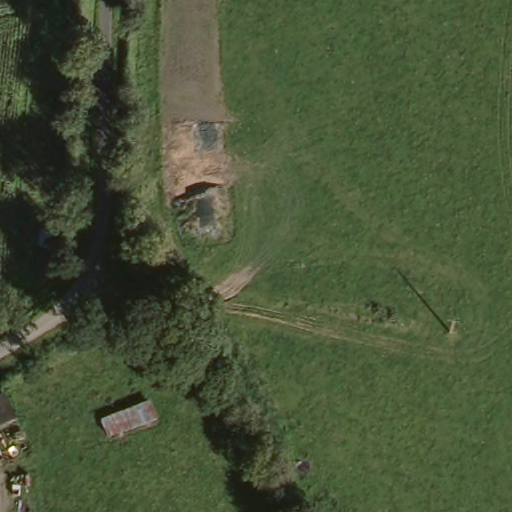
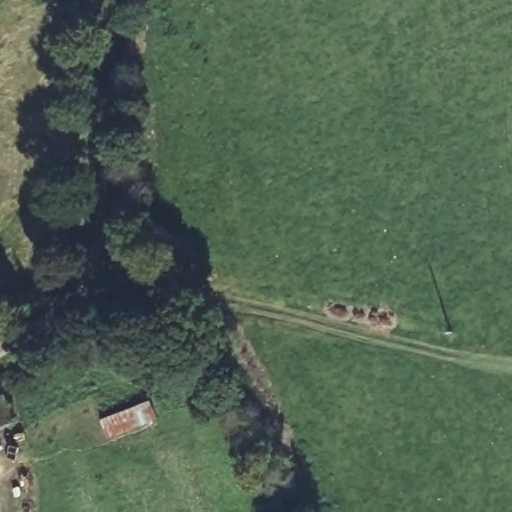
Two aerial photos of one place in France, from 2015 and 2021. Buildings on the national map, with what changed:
unchanged [(0,432),(0,396),(7,392),(22,421),(0,432)]
unchanged [(148,406),(156,423),(118,442),(110,425),(148,406)]

